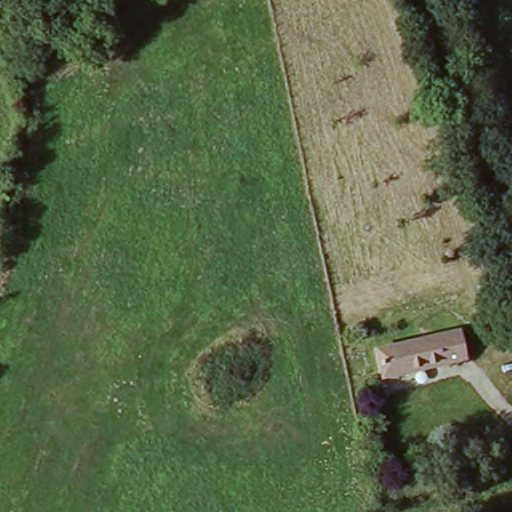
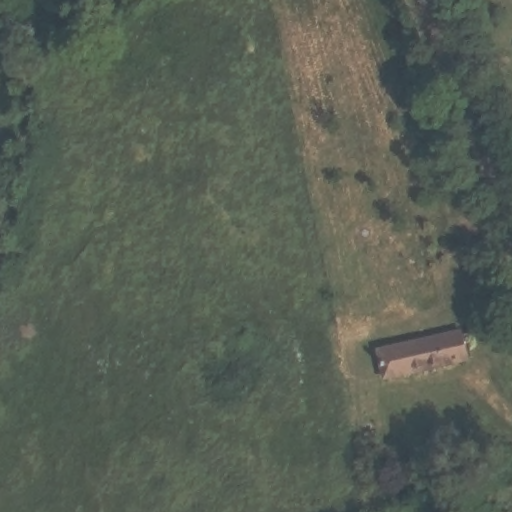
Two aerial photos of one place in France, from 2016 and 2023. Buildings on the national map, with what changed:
unchanged [(460,332),(464,351),(382,370),(376,350),(460,332)]

